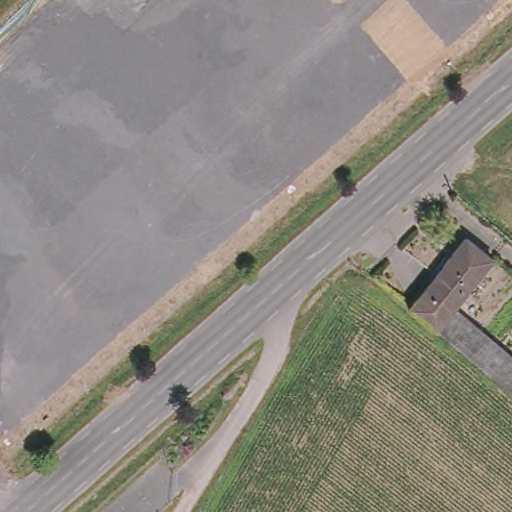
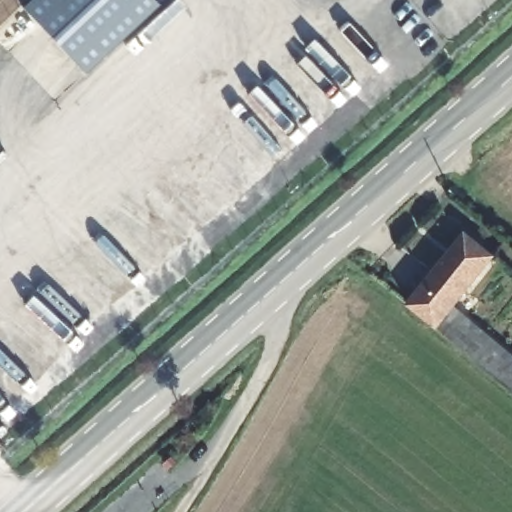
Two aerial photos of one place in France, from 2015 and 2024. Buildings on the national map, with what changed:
new [(157,0),(165,9),(93,77),(30,12),(44,0),(157,0)]
unchanged [(442,331),(411,306),(464,233),(497,257),(462,304),(442,331)]
unchanged [(512,347),(512,389),(442,331),(462,304),(512,347)]

